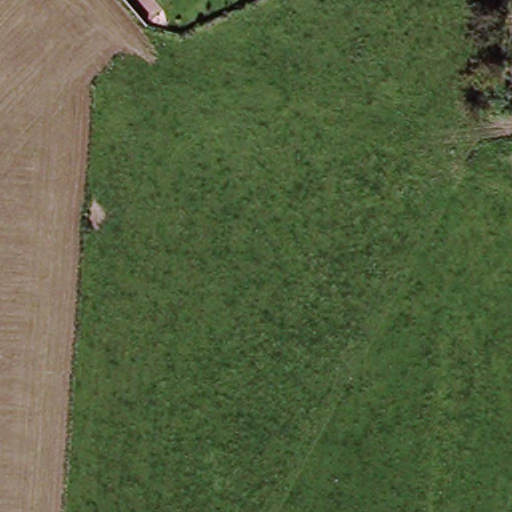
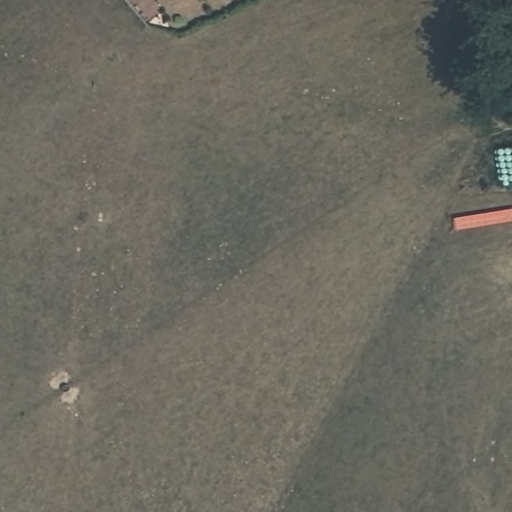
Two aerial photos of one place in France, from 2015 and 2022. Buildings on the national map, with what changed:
[]

